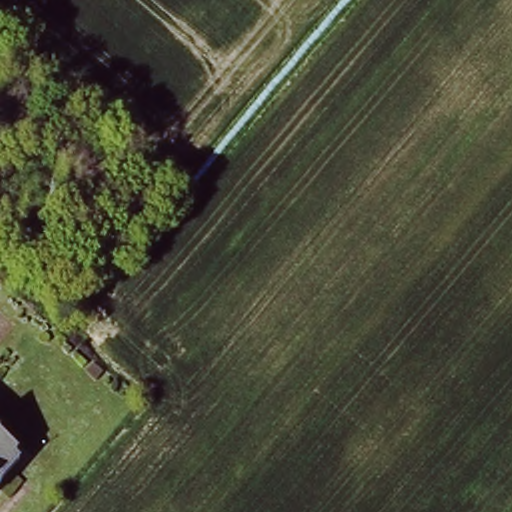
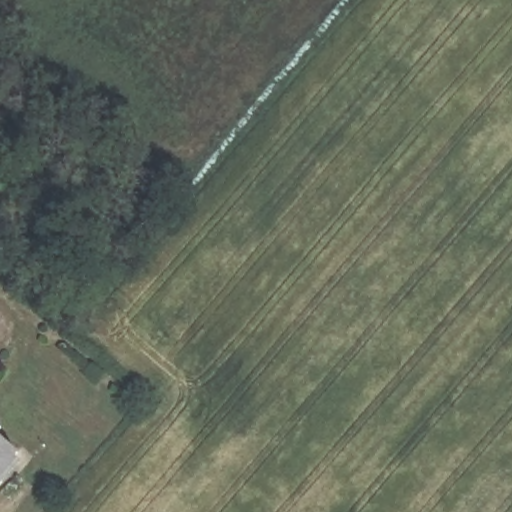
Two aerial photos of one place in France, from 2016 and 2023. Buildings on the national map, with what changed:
unchanged [(16,452),(0,470),(0,437),(16,452)]

